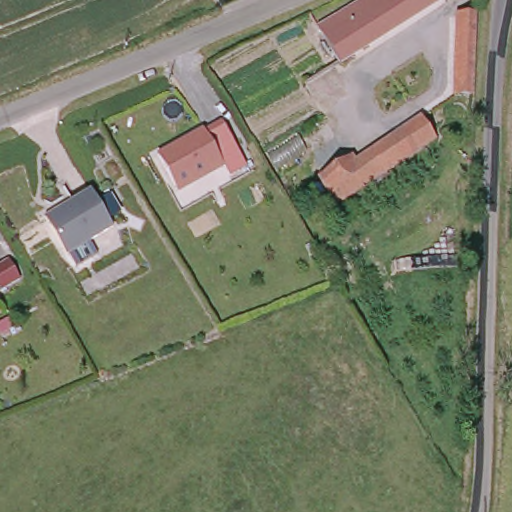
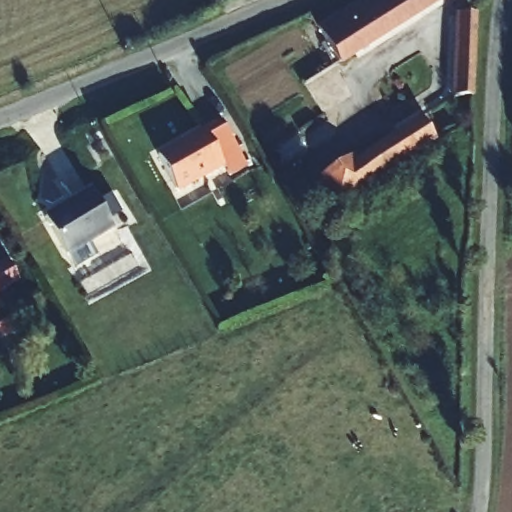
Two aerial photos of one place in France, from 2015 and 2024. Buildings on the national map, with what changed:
unchanged [(367,4),(372,0),(441,0),(345,64),(345,63),(323,32),(367,4)]
unchanged [(473,17),(471,105),(457,104),(460,16),(473,17)]
unchanged [(360,156),(422,110),(438,134),(394,164),(340,202),(326,183),(325,181),(360,156)]
unchanged [(248,165),(231,176),(225,165),(177,193),(157,154),(203,127),(205,130),(222,120),(248,165)]
unchanged [(70,262),(62,250),(60,251),(35,212),(83,183),(107,220),(83,236),(92,248),(70,262)]
unchanged [(17,272),(0,282),(0,259),(8,255),(17,272)]

